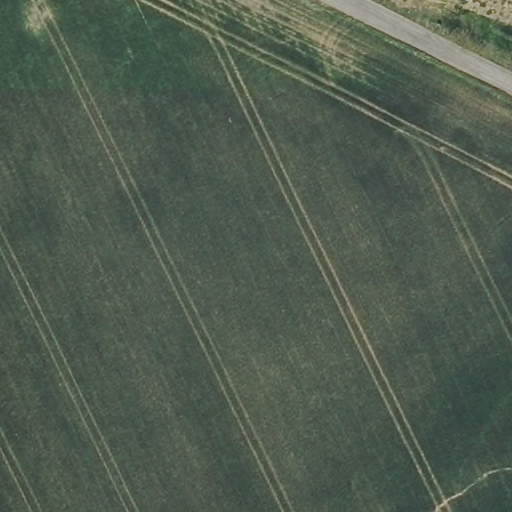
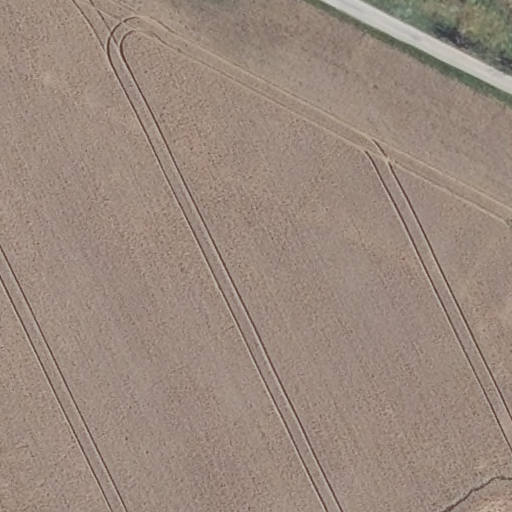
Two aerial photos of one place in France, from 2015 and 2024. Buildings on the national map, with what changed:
[]

